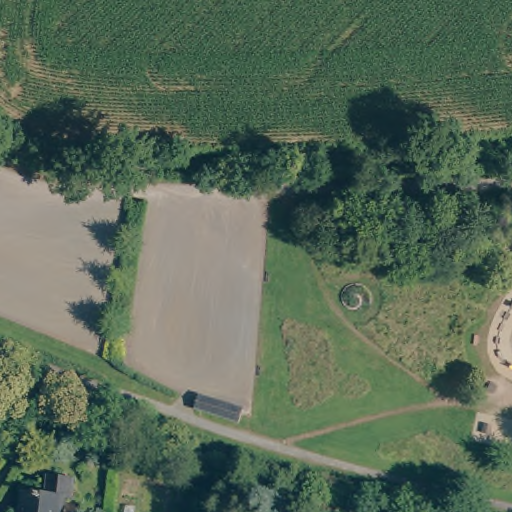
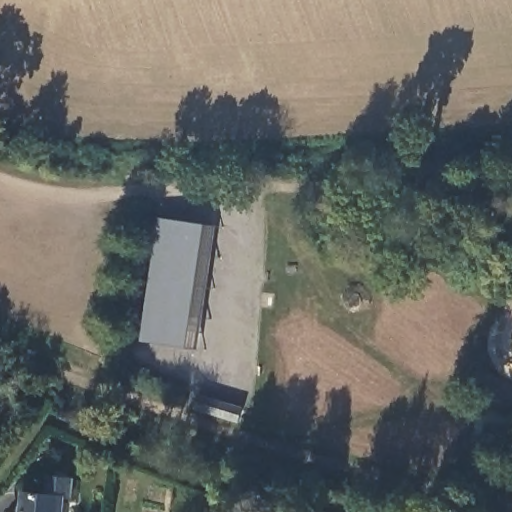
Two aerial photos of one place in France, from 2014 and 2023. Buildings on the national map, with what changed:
new [(160,218),(215,226),(196,350),(141,342),(160,218)]
unchanged [(241,407),(237,419),(194,406),(197,393),(241,407)]
unchanged [(23,512),(25,495),(65,499),(63,512),(23,512)]

